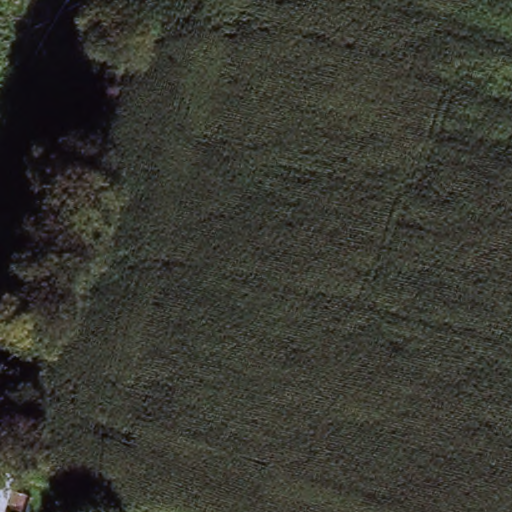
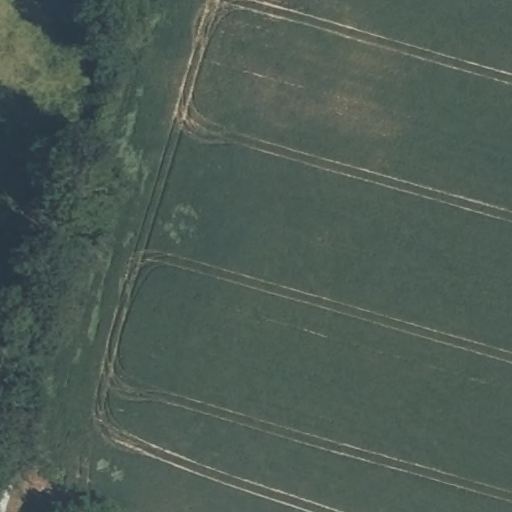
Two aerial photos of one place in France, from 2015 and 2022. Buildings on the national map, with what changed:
unchanged [(3,472),(0,472),(0,465),(5,446),(18,448),(0,510),(0,481),(3,472)]

